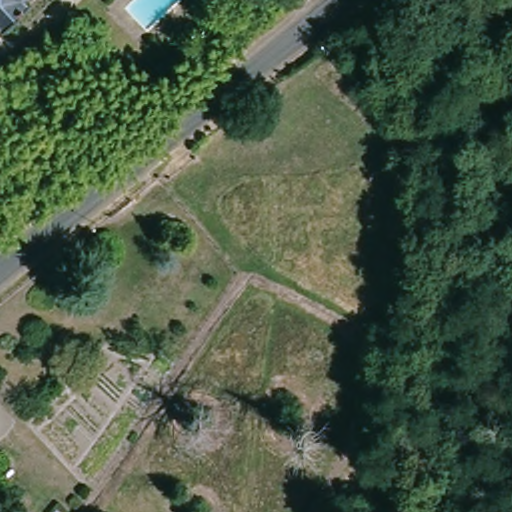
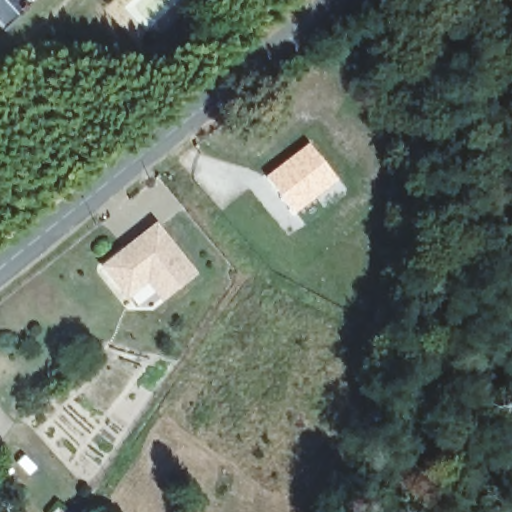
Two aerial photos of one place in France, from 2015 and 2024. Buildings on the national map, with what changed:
unchanged [(30,11),(12,31),(0,20),(0,0),(23,0),(19,4),(30,11)]
new [(307,144),(335,180),(293,213),(265,177),(307,144)]
new [(148,284),(127,300),(101,266),(156,220),(198,274),(162,303),(148,284)]

